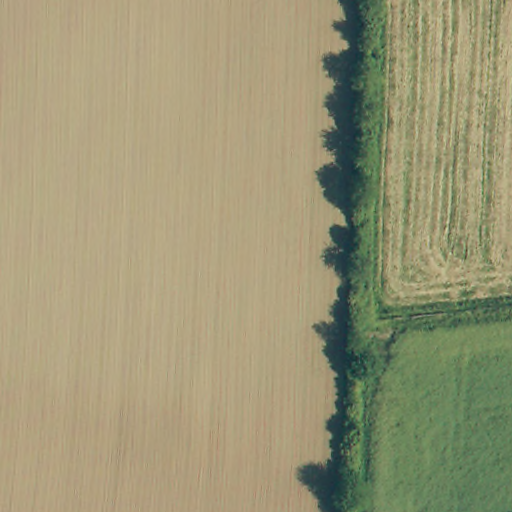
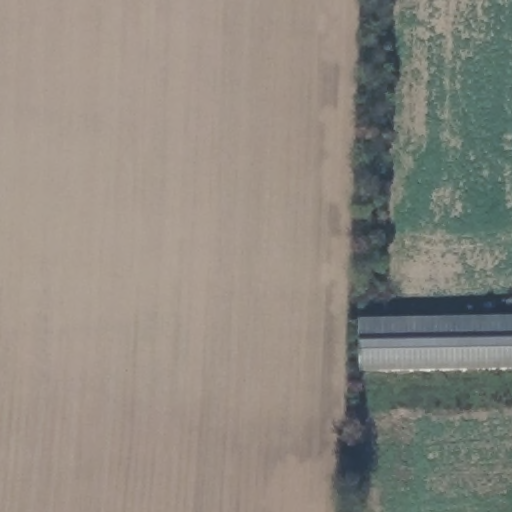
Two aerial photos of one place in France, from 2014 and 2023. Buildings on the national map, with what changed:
new [(512,314),(512,368),(359,370),(359,317),(512,314)]

